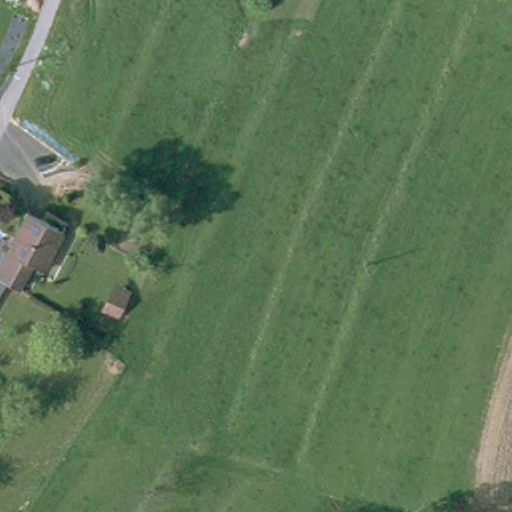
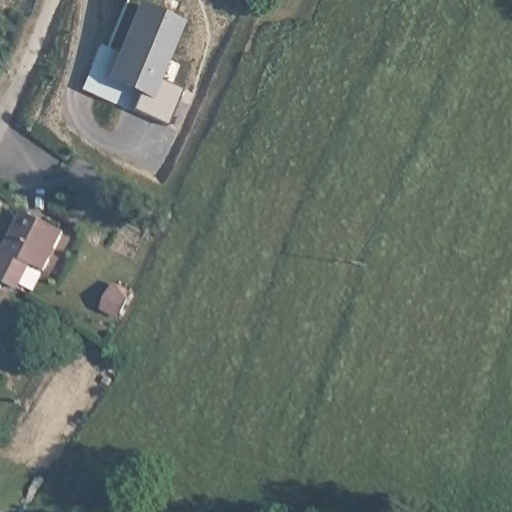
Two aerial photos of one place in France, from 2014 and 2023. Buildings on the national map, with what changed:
new [(183,20),(150,99),(99,83),(133,2),(183,20)]
unchanged [(55,234),(33,272),(22,265),(8,288),(0,283),(0,253),(0,245),(18,214),(55,234)]
unchanged [(118,290),(132,296),(121,319),(108,312),(118,290)]

